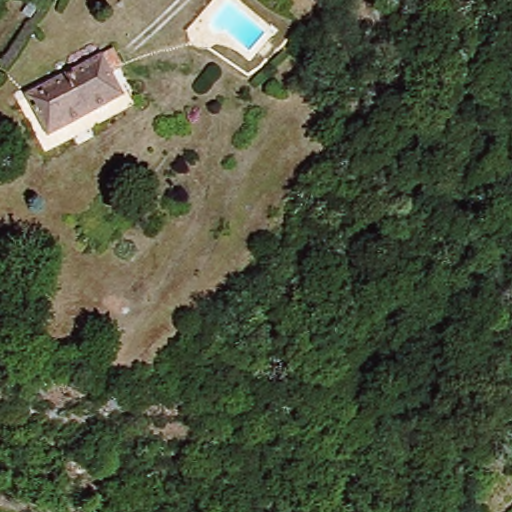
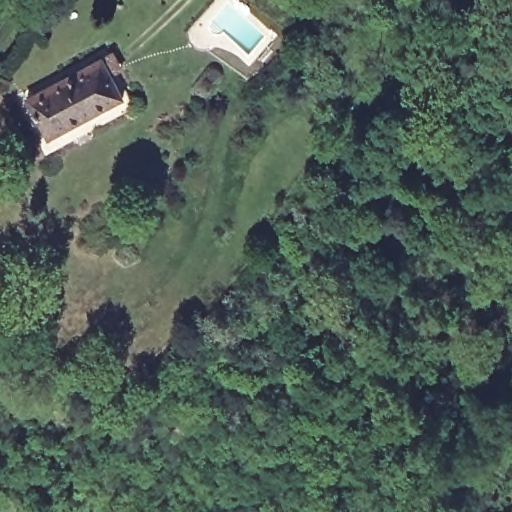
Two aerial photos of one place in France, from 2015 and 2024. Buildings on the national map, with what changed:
unchanged [(118,97),(43,137),(22,98),(97,57),(118,97)]

